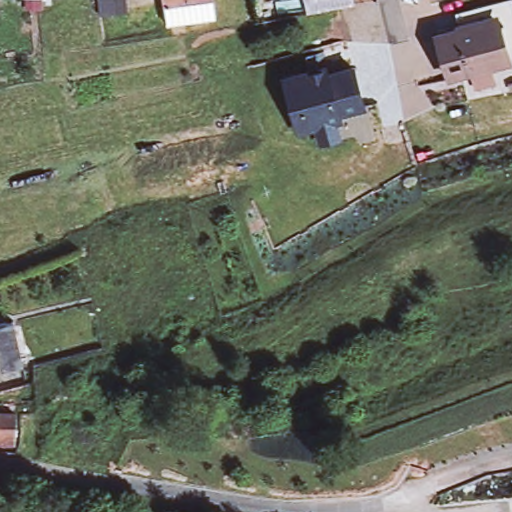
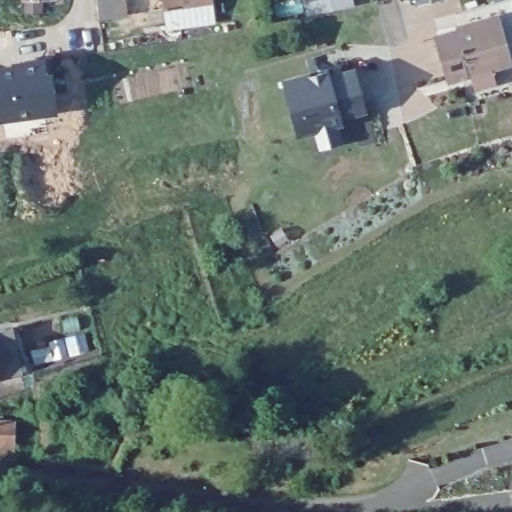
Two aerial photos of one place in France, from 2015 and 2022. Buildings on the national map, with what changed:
unchanged [(126,15),(102,18),(100,0),(124,0),(126,15)]
unchanged [(163,0),(175,0),(164,1),(163,0)]
unchanged [(167,23),(164,1),(175,0),(214,0),(216,17),(167,23)]
unchanged [(473,88),(469,72),(447,79),(443,63),(435,36),(495,20),(502,44),(506,62),(487,67),(491,83),(473,88)]
new [(46,65),(46,76),(55,75),(59,118),(0,126),(0,71),(46,65)]
unchanged [(319,149),(315,132),(299,137),(284,83),(325,72),(327,79),(352,72),(364,113),(338,120),(340,126),(336,127),(341,144),(319,149)]
unchanged [(14,327),(23,373),(0,378),(0,330),(14,327)]
unchanged [(0,452),(0,421),(16,421),(16,444),(4,444),(3,452),(0,452)]

